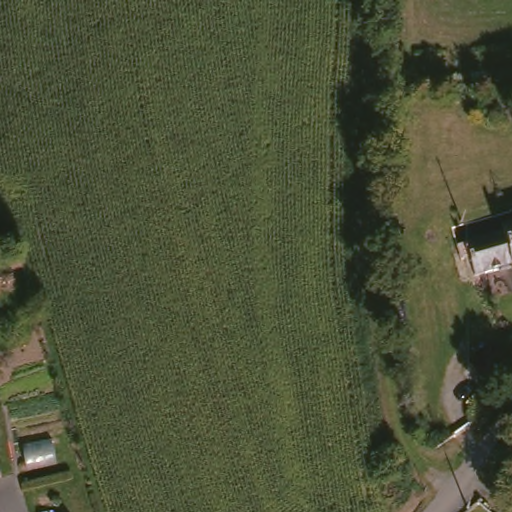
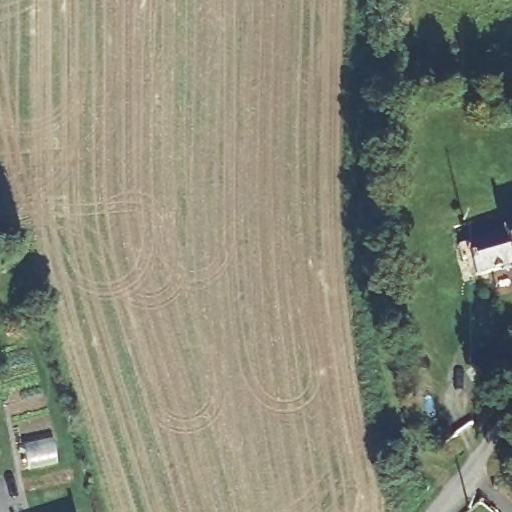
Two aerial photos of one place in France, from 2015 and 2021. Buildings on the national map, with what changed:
unchanged [(469,244),(477,241),(479,240),(512,231),(512,263),(488,271),(482,255),(474,257),(469,244)]

